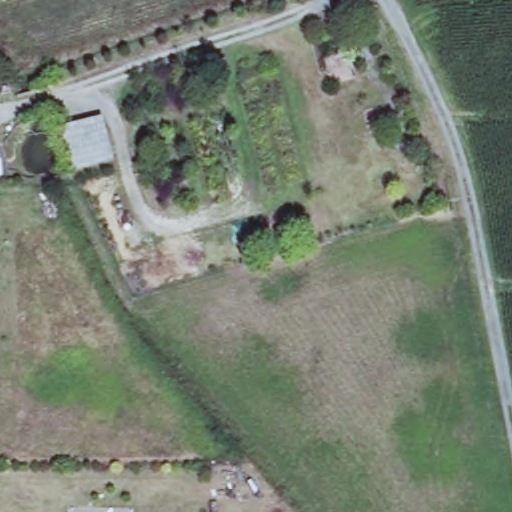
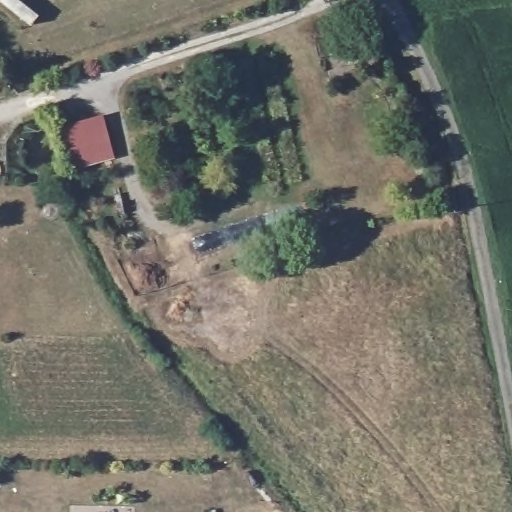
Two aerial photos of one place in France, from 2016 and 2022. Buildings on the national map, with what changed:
unchanged [(102,115),(112,159),(71,169),(60,127),(102,115)]

